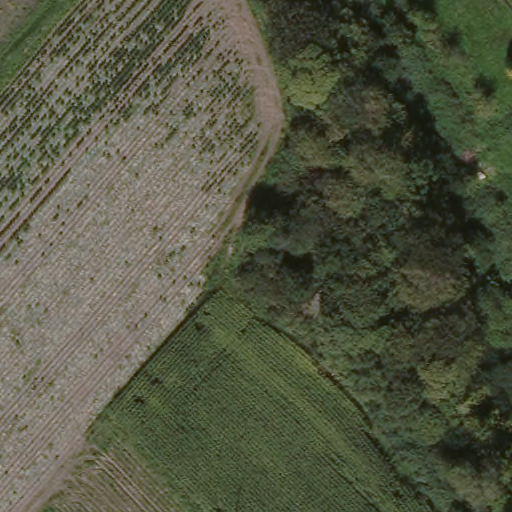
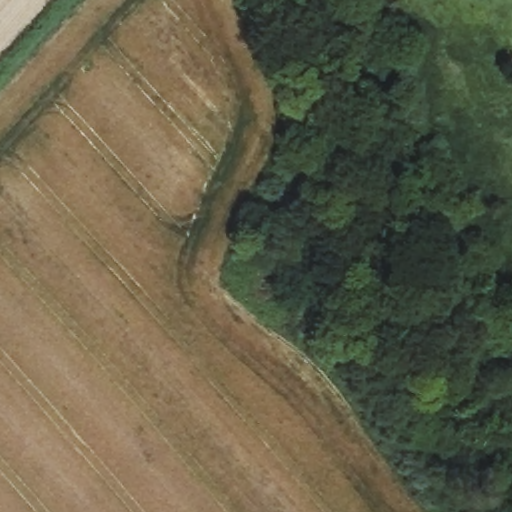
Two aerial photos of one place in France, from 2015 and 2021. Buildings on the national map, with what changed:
[]

